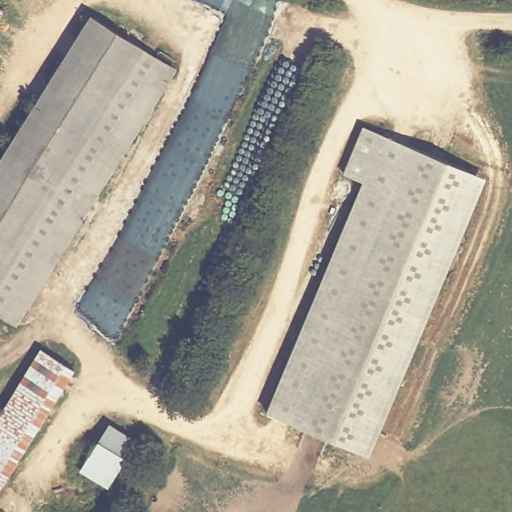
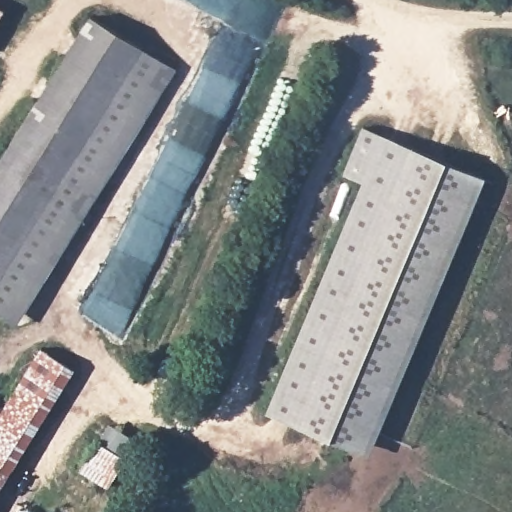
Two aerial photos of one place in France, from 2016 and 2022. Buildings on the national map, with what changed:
unchanged [(0,11),(0,0),(6,0),(0,11)]
unchanged [(0,309),(0,156),(92,9),(178,64),(17,320),(0,309)]
unchanged [(483,178),(368,457),(264,412),(360,183),(342,175),(361,125),(483,178)]
unchanged [(57,349),(76,361),(0,484),(0,403),(17,414),(57,349)]
unchanged [(111,421),(129,432),(138,438),(111,482),(102,477),(83,465),(111,421)]

